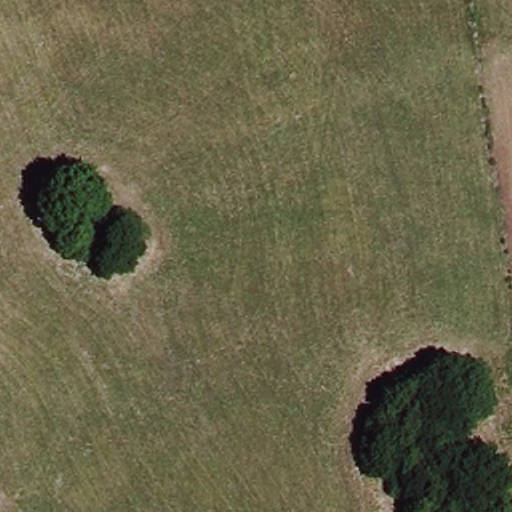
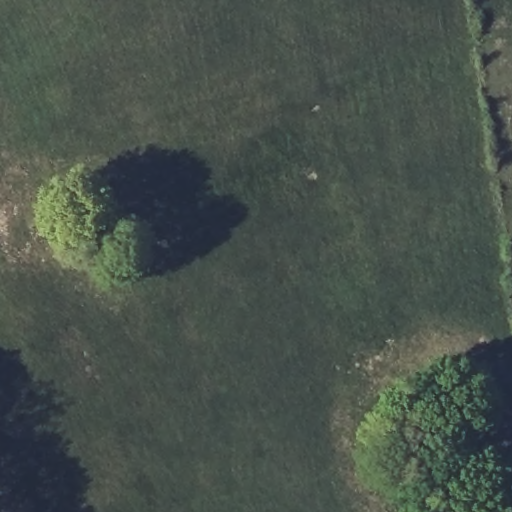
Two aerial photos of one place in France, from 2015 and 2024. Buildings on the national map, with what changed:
[]

